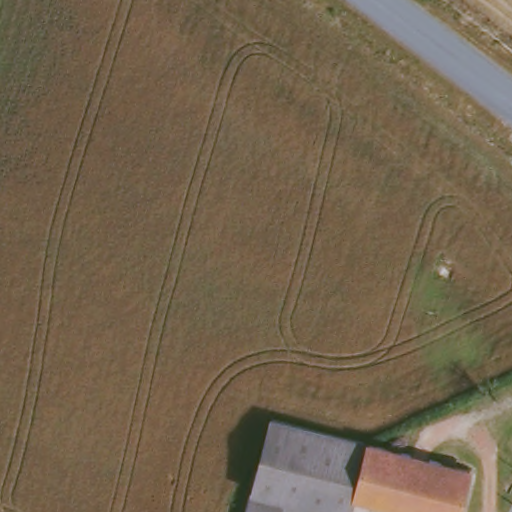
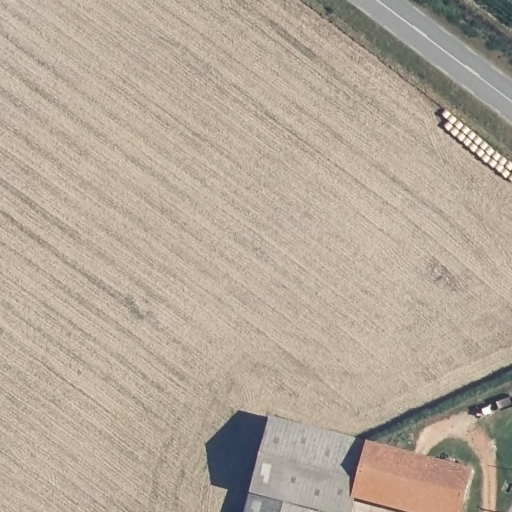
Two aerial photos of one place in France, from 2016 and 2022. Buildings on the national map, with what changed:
unchanged [(267,422),(362,444),(362,446),(350,499),(347,512),(326,512),(312,509),(250,494),(267,422)]
unchanged [(464,469),(454,512),(406,512),(350,499),(362,446),(464,469)]
unchanged [(312,512),(245,512),(250,494),(312,509),(312,512)]

